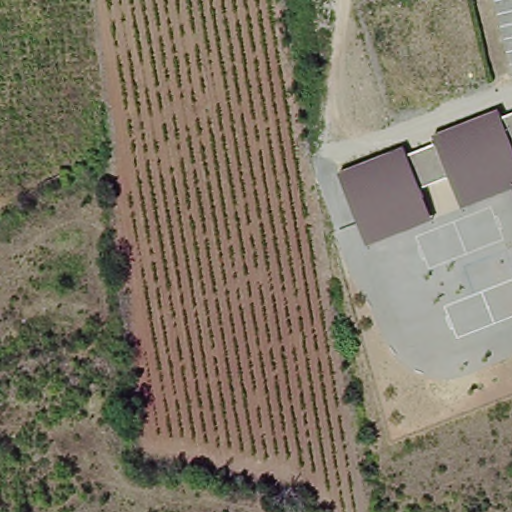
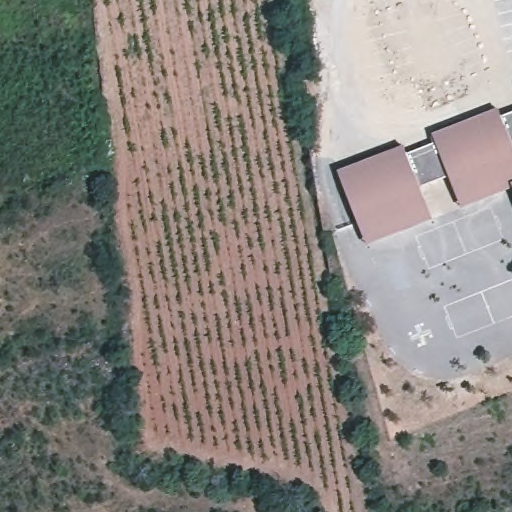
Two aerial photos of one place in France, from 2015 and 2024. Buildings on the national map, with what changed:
unchanged [(399,146),(404,154),(433,141),(430,134),(496,109),(500,116),(512,111),(512,196),(510,190),(460,209),(448,179),(418,191),(428,219),(361,245),(339,170),(399,146)]

